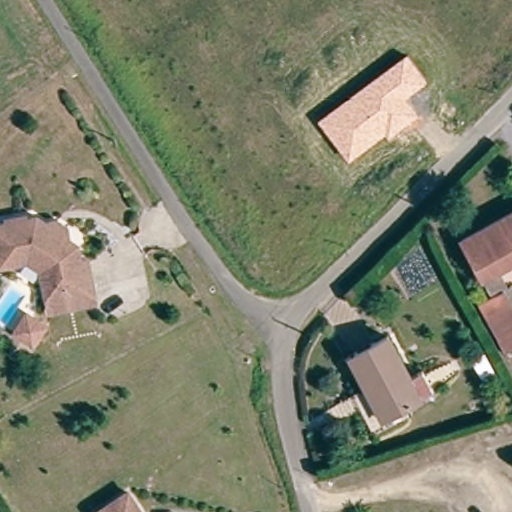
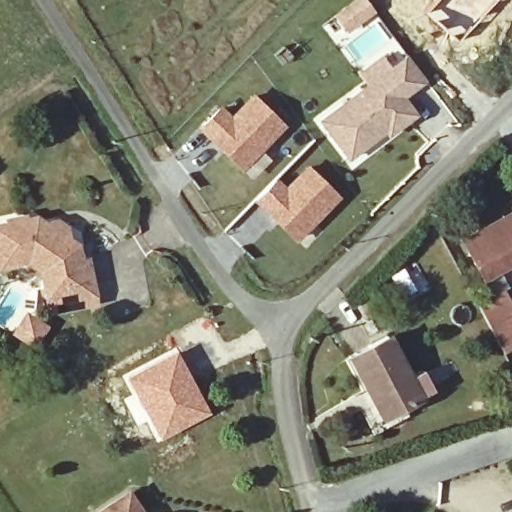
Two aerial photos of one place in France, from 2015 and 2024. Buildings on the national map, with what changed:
new [(422,10),(432,0),(494,0),(455,41),(422,10)]
unchanged [(316,119),(406,53),(427,80),(405,97),(418,114),(388,140),(384,135),(348,161),(316,119)]
new [(232,120),(253,97),(282,127),(258,150),(270,161),(254,179),(199,130),(220,107),(232,120)]
new [(285,190),(308,168),(337,197),(313,221),(323,230),(305,250),(255,199),(275,180),(285,190)]
unchanged [(512,254),(484,268),(467,231),(512,209),(512,254)]
unchanged [(44,316),(41,302),(39,285),(45,284),(44,282),(26,261),(8,264),(9,270),(0,272),(0,233),(4,232),(2,225),(13,224),(17,225),(25,224),(31,230),(40,228),(61,243),(64,249),(74,257),(75,267),(82,265),(87,295),(90,308),(44,316)]
unchanged [(512,340),(500,346),(476,293),(504,280),(512,297),(512,340)]
unchanged [(26,340),(8,327),(14,319),(21,308),(29,313),(40,321),(26,340)]
unchanged [(410,378),(421,371),(432,390),(399,411),(403,418),(371,438),(344,393),(357,385),(344,363),(385,336),(410,378)]
new [(134,394),(125,378),(179,350),(210,412),(157,442),(147,421),(138,426),(124,400),(134,394)]
unchanged [(135,492),(149,512),(106,512),(135,492)]

